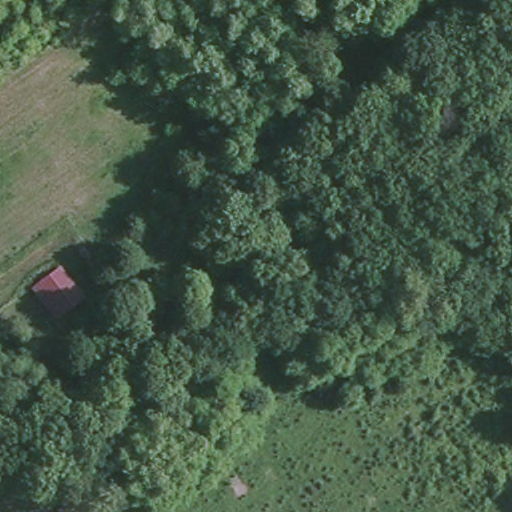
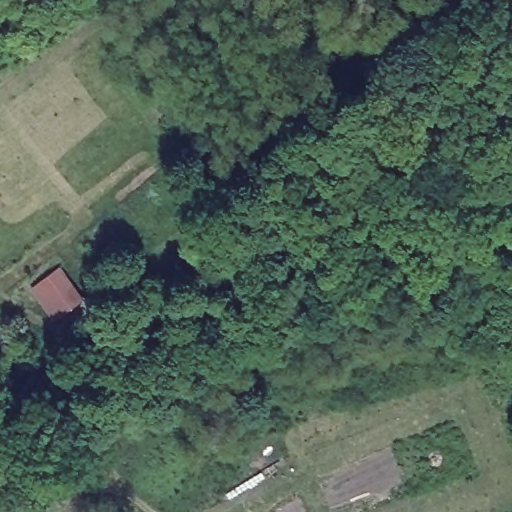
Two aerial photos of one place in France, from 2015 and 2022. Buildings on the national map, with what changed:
unchanged [(85,295),(53,318),(31,286),(62,263),(85,295)]

